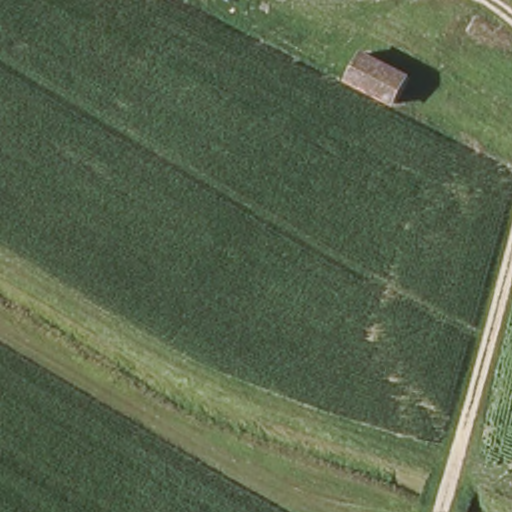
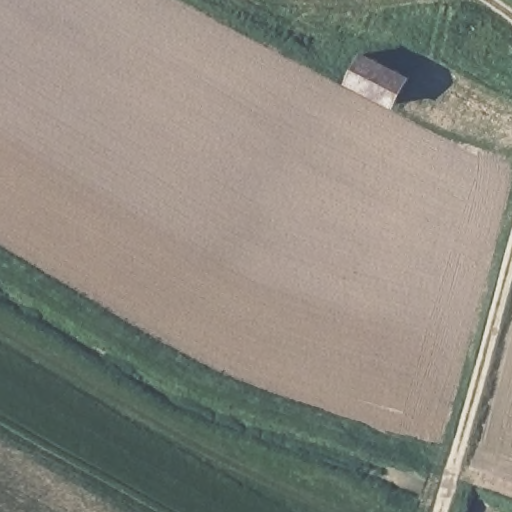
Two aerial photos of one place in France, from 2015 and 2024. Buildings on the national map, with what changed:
unchanged [(410,74),(395,103),(350,80),(366,50),(410,74)]

